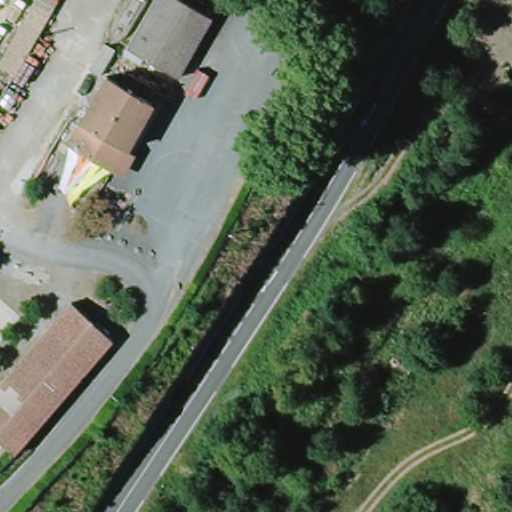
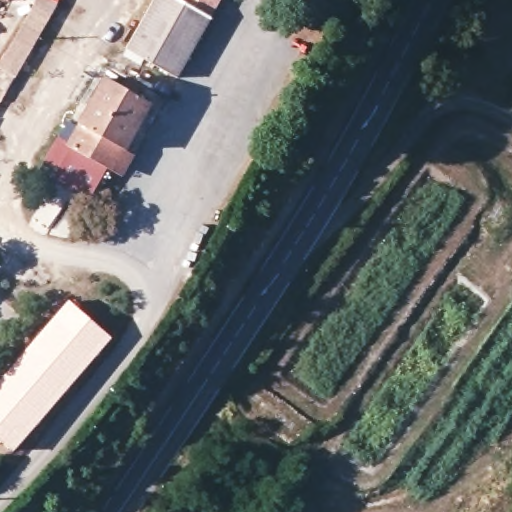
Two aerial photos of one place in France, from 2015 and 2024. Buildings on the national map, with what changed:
unchanged [(0,72),(0,65),(38,0),(61,0),(15,81),(0,72)]
unchanged [(189,0),(212,14),(217,16),(180,76),(177,75),(130,46),(159,0),(189,0)]
unchanged [(115,170),(70,144),(107,83),(120,91),(128,78),(146,89),(137,101),(150,109),(115,170)]
unchanged [(0,449),(0,384),(71,303),(112,339),(13,453),(10,449),(5,454),(0,449)]

